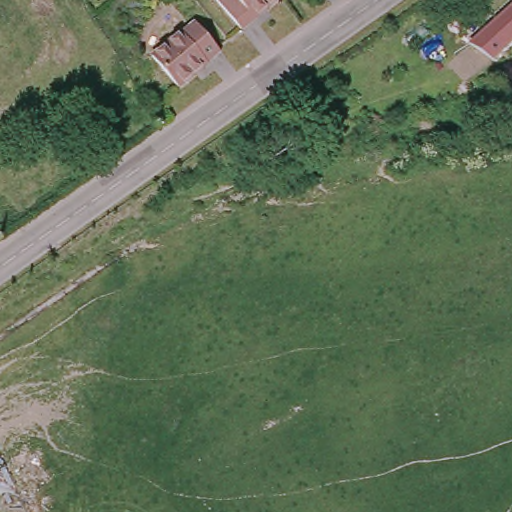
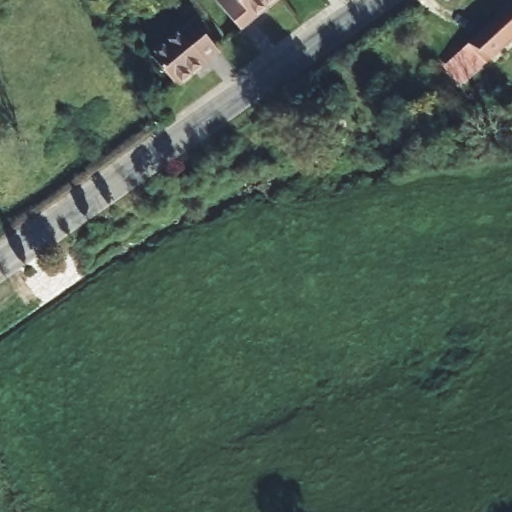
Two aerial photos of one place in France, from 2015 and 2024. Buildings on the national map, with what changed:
unchanged [(209,3),(212,0),(275,0),(235,34),(209,3)]
unchanged [(500,69),(477,52),(492,32),(496,35),(512,16),(512,54),(500,69)]
unchanged [(217,53),(206,62),(175,90),(147,59),(183,27),(190,22),(217,53)]

